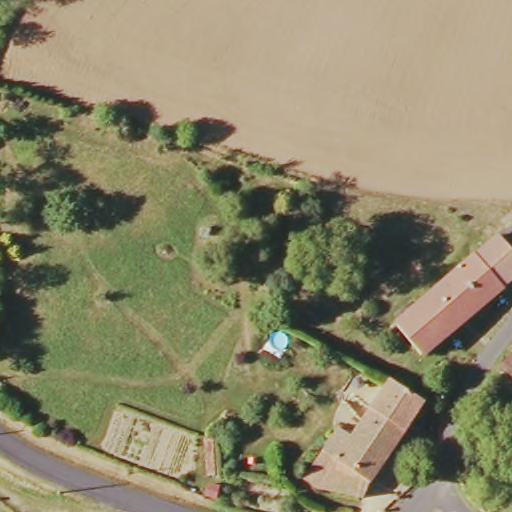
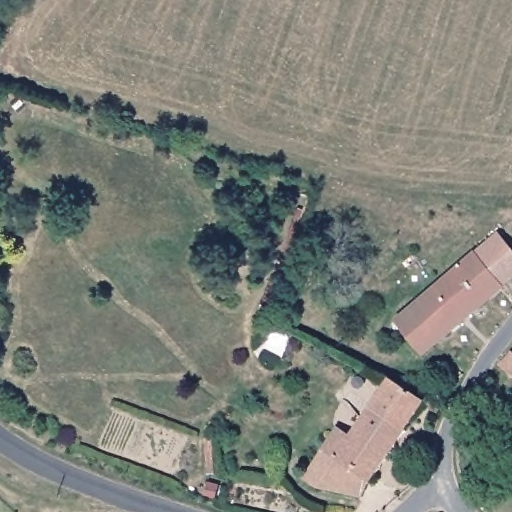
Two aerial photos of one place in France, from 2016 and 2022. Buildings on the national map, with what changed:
unchanged [(512,248),(512,282),(505,288),(481,256),(504,237),(512,248)]
unchanged [(425,355),(398,325),(409,315),(481,256),(505,288),(425,355)]
unchanged [(510,349),(512,346),(512,351),(510,349)]
unchanged [(512,355),(512,375),(497,363),(507,351),(512,355)]
unchanged [(340,425),(351,434),(393,379),(424,402),(367,482),(360,495),(316,488),(307,472),(340,425)]

